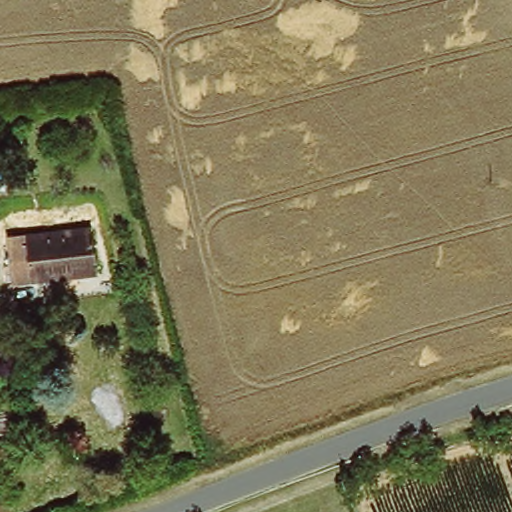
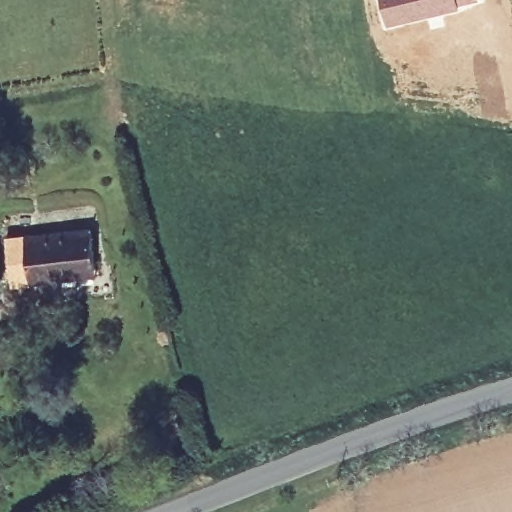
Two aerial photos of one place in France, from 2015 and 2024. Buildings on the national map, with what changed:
new [(480,0),(460,7),(386,26),(380,0),(480,0)]
unchanged [(89,276),(7,285),(2,237),(84,228),(89,276)]

